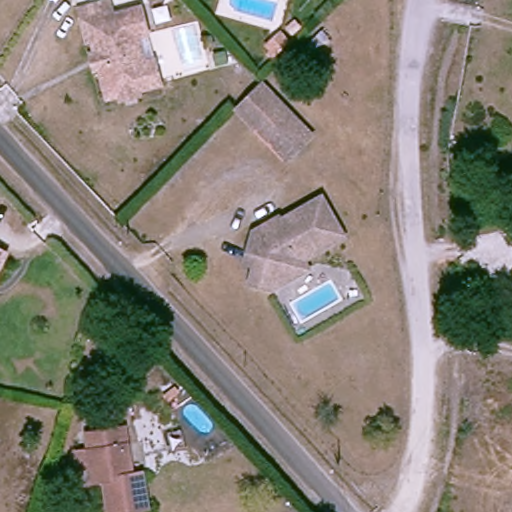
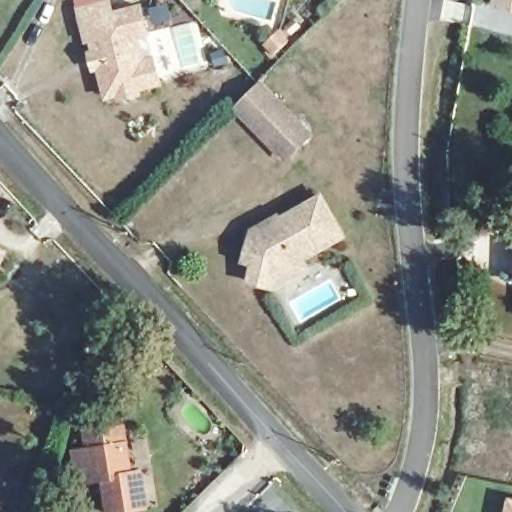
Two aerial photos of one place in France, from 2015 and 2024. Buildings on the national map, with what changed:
unchanged [(145,90),(136,92),(131,100),(120,101),(114,97),(105,98),(99,66),(91,66),(89,53),(96,52),(93,36),(88,37),(85,22),(81,7),(111,0),(115,16),(141,12),(147,37),(135,40),(141,67),(155,65),(160,89),(145,90)]
unchanged [(238,110),(253,95),(258,87),(262,84),(272,94),(312,136),(286,161),(238,110)]
unchanged [(280,289),(275,287),(263,286),(266,267),(257,264),(261,235),(328,198),(347,233),(306,257),(313,270),(280,289)]
unchanged [(509,276),(510,266),(510,260),(511,245),(512,246),(512,277),(509,276)]
unchanged [(0,275),(0,255),(9,259),(0,275)]
unchanged [(136,479),(146,477),(152,512),(117,512),(113,484),(100,485),(90,438),(129,432),(136,479)]
new [(508,498),(512,499),(512,512),(504,512),(508,498)]

